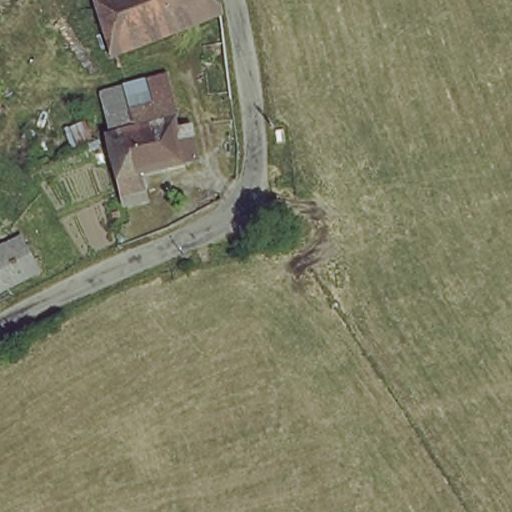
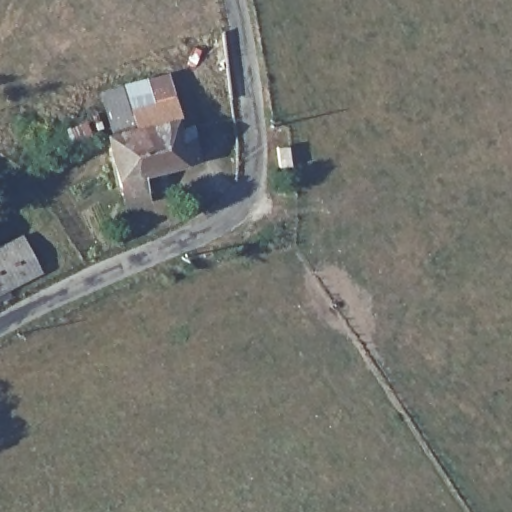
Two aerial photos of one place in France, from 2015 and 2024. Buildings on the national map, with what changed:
demolished [(216,20),(116,55),(102,3),(112,0),(211,0),(216,20)]
unchanged [(126,76),(169,70),(175,99),(129,105),(126,76)]
unchanged [(132,134),(129,105),(175,99),(180,128),(193,130),(194,157),(150,168),(152,227),(119,227),(109,135),(132,134)]
unchanged [(17,244),(32,280),(0,298),(0,253),(17,244)]

